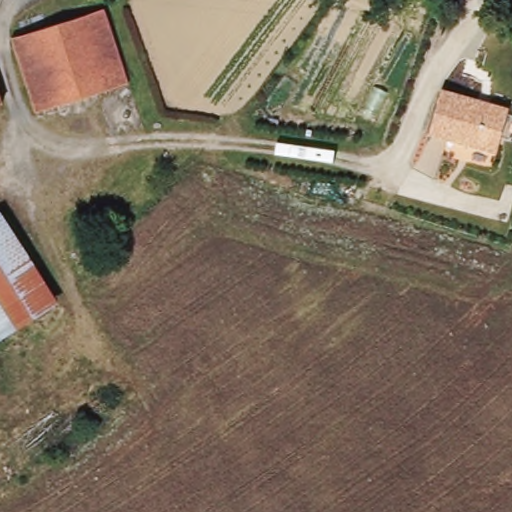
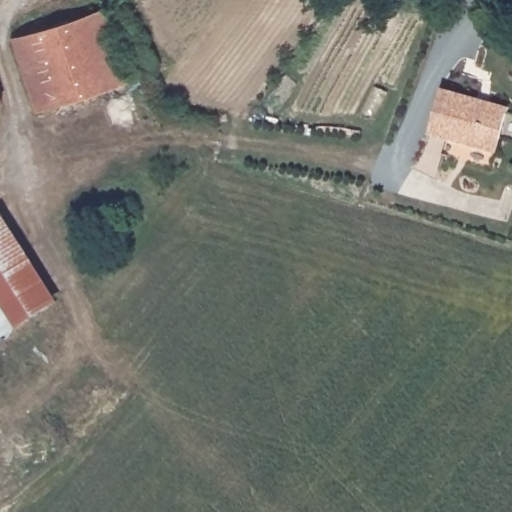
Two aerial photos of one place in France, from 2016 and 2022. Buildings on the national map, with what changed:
unchanged [(132,83),(39,112),(16,37),(107,9),(132,83)]
unchanged [(5,104),(0,106),(0,90),(5,104)]
unchanged [(498,153),(432,135),(444,91),(512,108),(498,153)]
unchanged [(55,304),(0,340),(0,218),(55,304)]

